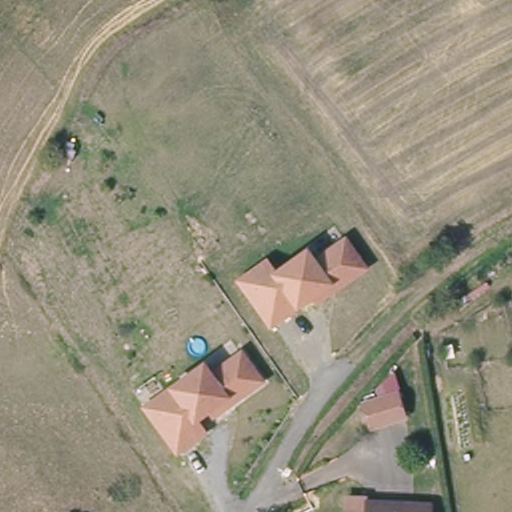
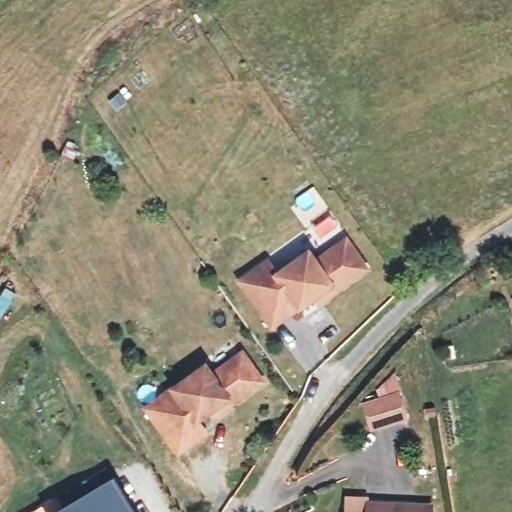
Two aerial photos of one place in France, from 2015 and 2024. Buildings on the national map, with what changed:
unchanged [(313,294),(269,320),(241,274),(269,257),(277,269),(312,250),(317,260),(349,241),(367,271),(333,292),(317,301),(313,294)]
unchanged [(209,409),(195,418),(204,431),(175,448),(146,400),(207,364),(214,374),(247,354),(264,385),(232,405),(214,415),(209,409)]
unchanged [(397,387),(405,412),(372,424),(365,400),(397,387)]
new [(52,512),(112,476),(135,512),(52,512)]
unchanged [(429,512),(348,512),(370,511),(370,501),(428,499),(429,512)]

